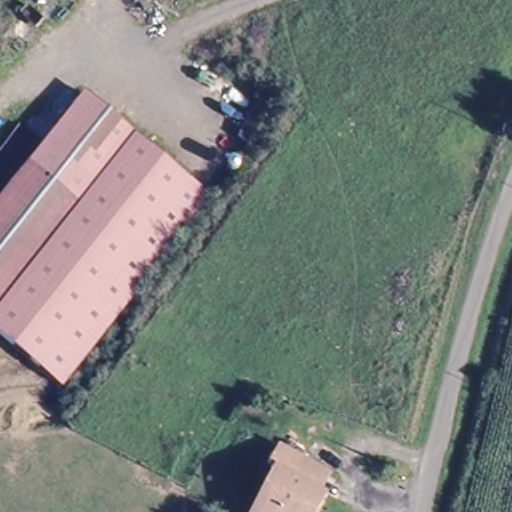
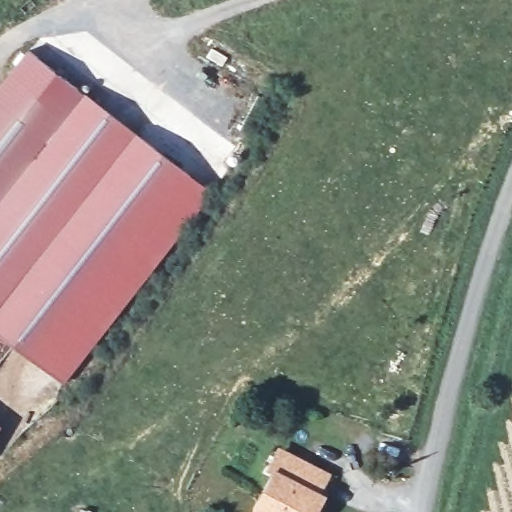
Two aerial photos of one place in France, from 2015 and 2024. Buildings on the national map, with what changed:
new [(47,142),(0,200),(0,85),(29,49),(87,93),(47,142)]
unchanged [(87,93),(132,132),(95,181),(92,179),(53,147),(47,142),(87,93)]
unchanged [(209,190),(60,377),(0,329),(0,302),(137,132),(209,190)]
unchanged [(47,142),(53,147),(92,179),(0,297),(0,200),(47,142)]
new [(2,428),(0,431),(0,426),(2,428)]
unchanged [(275,468),(271,465),(281,445),(331,470),(322,489),(329,493),(319,512),(255,512),(275,468)]

